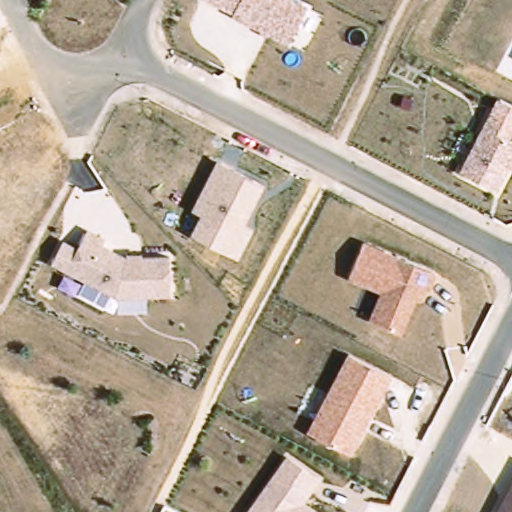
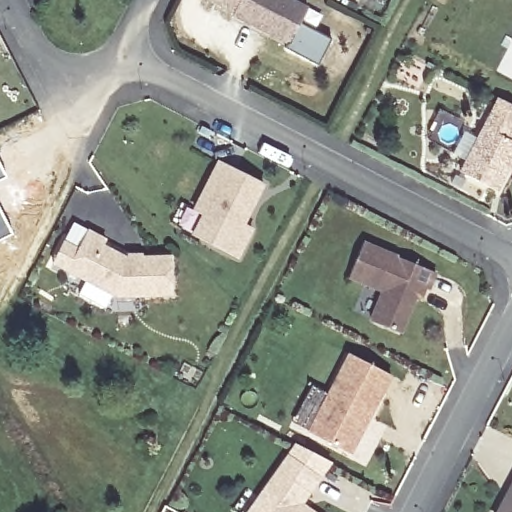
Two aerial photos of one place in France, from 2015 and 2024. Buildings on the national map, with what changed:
unchanged [(234,17),(201,0),(242,0),(234,17)]
unchanged [(309,5),(289,45),(234,17),(242,0),(299,0),(309,5)]
unchanged [(499,192),(459,173),(491,111),(512,121),(512,166),(499,192)]
unchanged [(265,185),(246,225),(253,228),(238,258),(192,234),(201,215),(193,210),(216,160),(265,185)]
new [(7,176),(0,180),(0,162),(7,176)]
new [(13,232),(0,239),(0,207),(13,232)]
unchanged [(108,237),(105,245),(126,254),(145,252),(146,258),(172,255),(175,297),(120,300),(51,266),(63,239),(80,249),(89,229),(108,237)]
unchanged [(439,272),(426,305),(418,301),(404,333),(369,320),(380,290),(350,278),(365,240),(439,272)]
unchanged [(392,376),(350,455),(306,432),(348,353),(392,376)]
unchanged [(305,504),(316,512),(248,512),(287,453),(323,475),(305,504)]
unchanged [(495,512),(512,479),(512,512),(495,512)]

